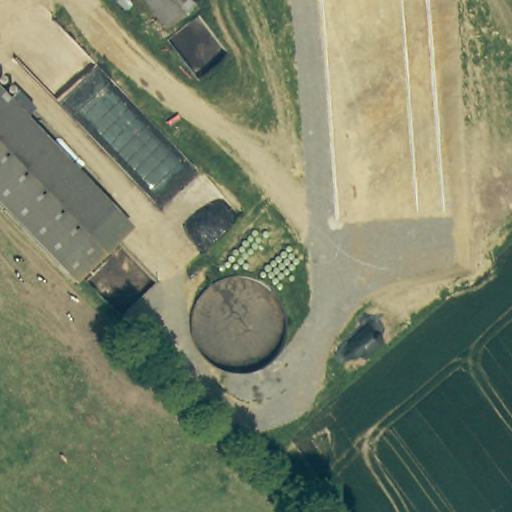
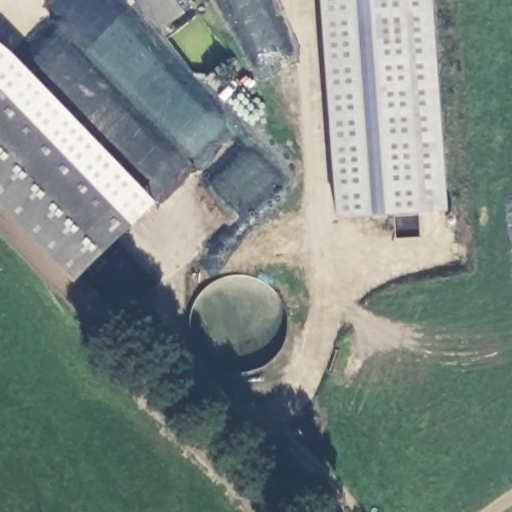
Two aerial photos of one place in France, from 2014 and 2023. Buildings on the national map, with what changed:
unchanged [(148,0),(197,0),(198,1),(167,25),(148,0)]
new [(338,220),(321,0),(432,0),(448,212),(338,220)]
unchanged [(78,278),(0,199),(0,89),(134,222),(78,278)]

